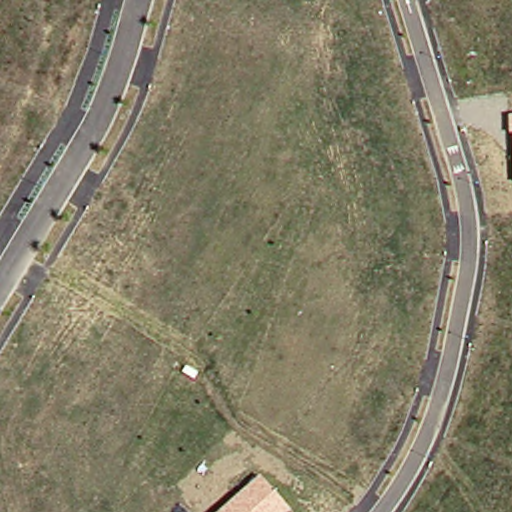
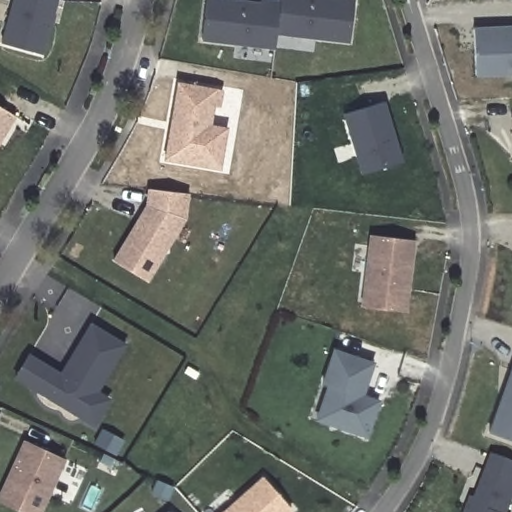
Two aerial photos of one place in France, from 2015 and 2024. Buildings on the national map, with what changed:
new [(14,0),(57,0),(42,55),(3,44),(14,0)]
new [(274,49),(201,41),(207,0),(248,0),(279,3),(276,34),(274,49)]
new [(350,43),(276,34),(279,3),(279,0),(355,0),(350,43)]
new [(512,27),(512,74),(475,76),(474,29),(501,28),(511,28),(512,27)]
new [(179,83),(206,88),(221,91),(218,106),(213,105),(210,126),(226,129),(220,168),(165,159),(170,131),(172,123),(179,83)]
new [(363,174),(344,114),(384,102),(392,128),(396,143),(402,162),(363,174)]
new [(15,117),(3,137),(0,141),(0,107),(15,117)]
unchanged [(509,117),(512,117),(512,135),(509,135),(509,117)]
new [(140,217),(148,205),(149,189),(189,194),(187,211),(147,281),(114,262),(137,223),(140,217)]
new [(369,235),(416,240),(408,312),(362,306),(369,235)]
unchanged [(126,344),(98,391),(111,399),(94,427),(14,378),(29,353),(61,372),(91,323),(126,344)]
new [(328,386),(323,384),(334,350),(373,364),(366,386),(363,396),(379,402),(367,437),(332,425),(317,420),(321,406),(328,386)]
new [(512,441),(489,433),(512,369),(512,441)]
new [(21,512),(0,502),(0,492),(24,439),(66,459),(43,512),(21,512)]
new [(475,500),(491,456),(512,463),(512,500),(511,500),(506,512),(465,512),(468,504),(471,498),(475,500)]
unchanged [(291,512),(220,512),(260,477),(292,511),(291,512)]
unchanged [(165,512),(168,510),(170,512),(165,512)]

